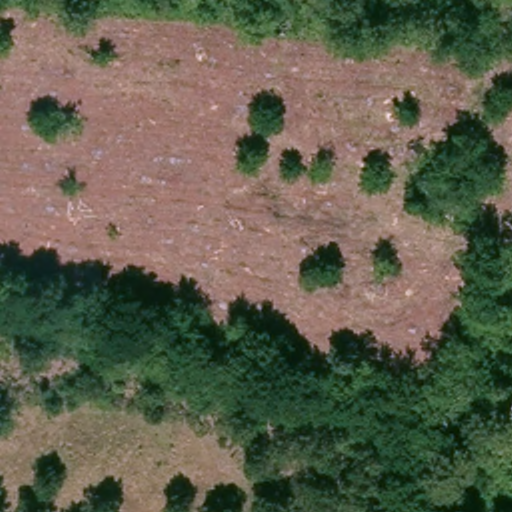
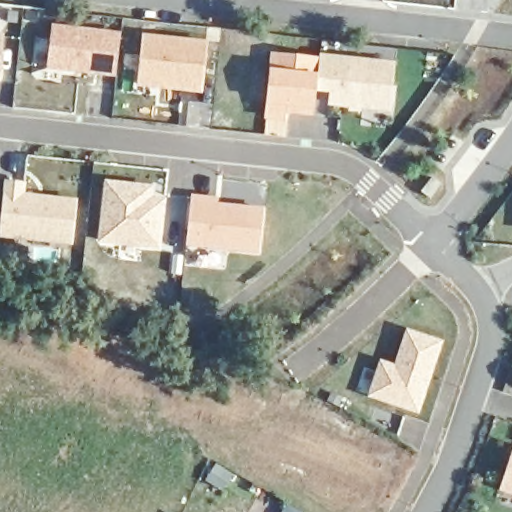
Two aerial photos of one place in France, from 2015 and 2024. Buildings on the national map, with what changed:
new [(210,40),(204,95),(137,88),(143,33),(210,40)]
new [(1,83),(0,83),(0,35),(6,36),(1,83)]
new [(322,53),(397,61),(391,113),(329,106),(330,94),(317,92),(315,112),(288,109),(287,122),(265,120),(272,52),(321,59),(322,53)]
new [(26,194),(79,200),(74,246),(0,238),(0,229),(5,181),(27,184),(26,194)]
new [(102,241),(108,183),(153,187),(153,199),(164,200),(161,247),(102,241)]
new [(266,208),(261,254),(187,246),(191,200),(266,208)]
new [(500,490),(512,454),(512,495),(500,490)]

